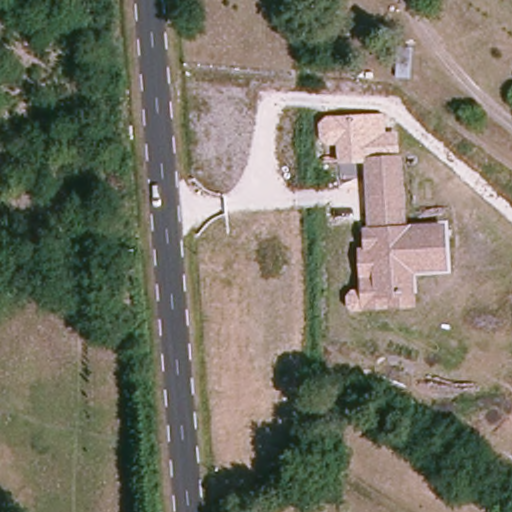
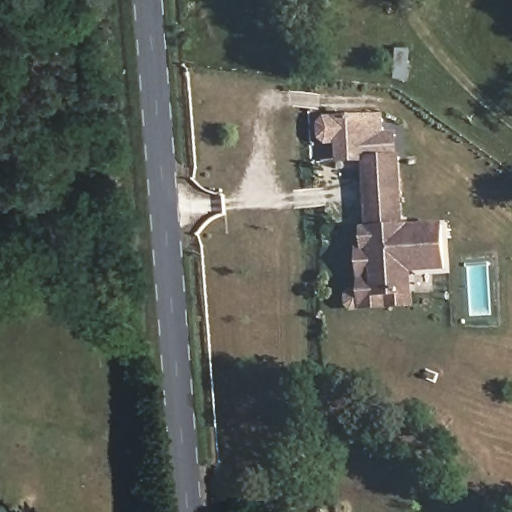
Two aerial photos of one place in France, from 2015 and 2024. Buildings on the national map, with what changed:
unchanged [(367,302),(367,291),(367,159),(340,159),(339,117),(387,117),(387,158),(400,158),(399,231),(440,231),(440,273),(404,274),(405,301),(405,312),(398,312),(368,313),(367,302)]

